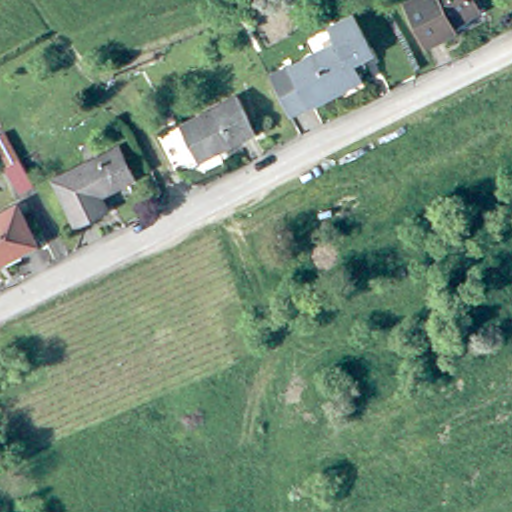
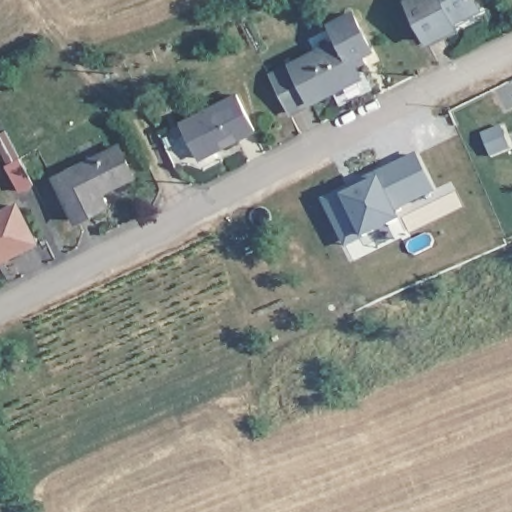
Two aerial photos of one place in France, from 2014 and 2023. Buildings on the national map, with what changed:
unchanged [(455,20),(458,26),(433,39),(411,0),(478,0),(481,6),(455,20)]
unchanged [(353,58),(359,69),(311,91),(294,57),(318,46),(310,28),(332,17),(331,16),(353,6),(370,41),(361,46),(364,53),(353,58)]
unchanged [(202,154),(183,119),(237,91),(255,126),(202,154)]
unchanged [(109,204),(81,218),(60,178),(123,146),(137,175),(111,187),(104,191),(109,204)]
new [(416,152),(436,192),(396,212),(400,221),(362,240),(346,248),(321,200),(416,152)]
unchanged [(25,192),(11,165),(23,158),(36,186),(25,192)]
unchanged [(0,259),(0,216),(22,205),(39,240),(0,259)]

